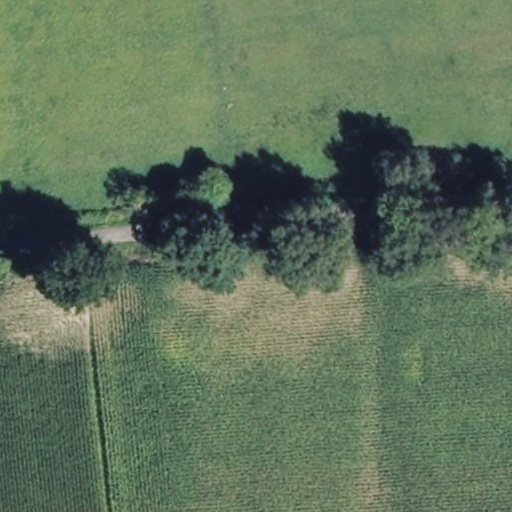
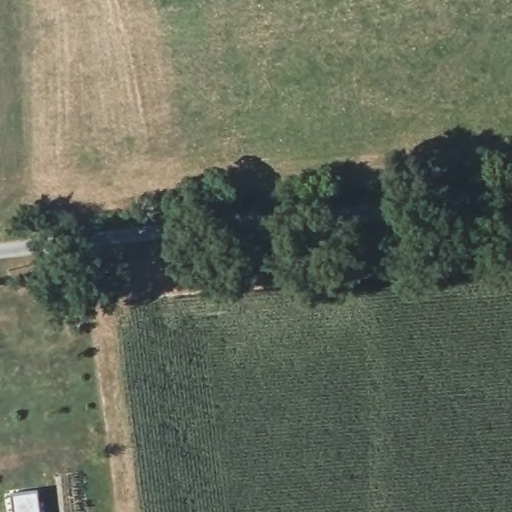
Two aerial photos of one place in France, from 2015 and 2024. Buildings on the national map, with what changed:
new [(12,495),(35,492),(38,512),(14,512),(12,495)]

